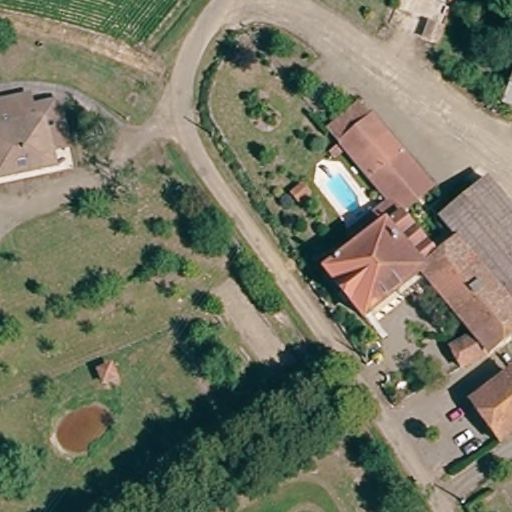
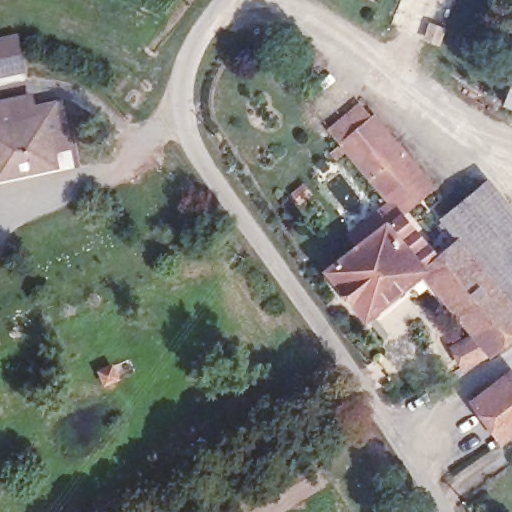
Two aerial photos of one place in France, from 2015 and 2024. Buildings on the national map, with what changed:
new [(26,72),(0,78),(0,37),(18,32),(26,72)]
unchanged [(505,114),(512,96),(512,116),(505,114)]
unchanged [(36,112),(45,111),(64,109),(69,141),(52,144),(45,145),(49,175),(0,184),(0,105),(34,100),(36,112)]
unchanged [(390,206),(338,136),(370,112),(422,182),(390,206)]
unchanged [(501,213),(455,248),(442,231),(484,196),(495,187),(510,206),(501,213)]
unchanged [(508,319),(453,250),(455,248),(501,213),(510,206),(512,208),(512,316),(508,319)]
unchanged [(366,325),(331,278),(361,255),(351,242),(393,211),(395,214),(403,225),(435,265),(453,250),(508,319),(512,316),(512,338),(493,355),(462,371),(452,354),(474,342),(426,280),(366,325)]
unchanged [(506,442),(475,399),(511,372),(512,373),(512,438),(506,442)]

